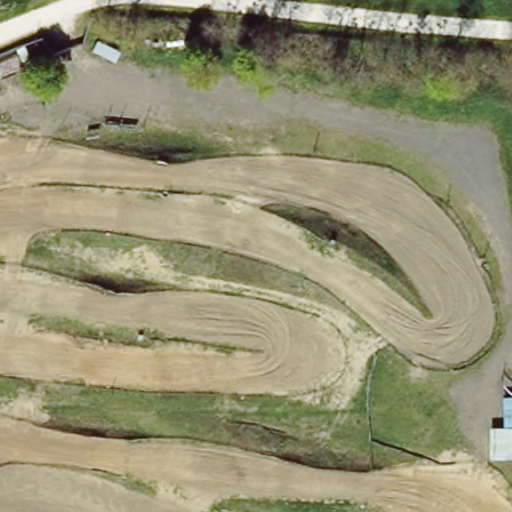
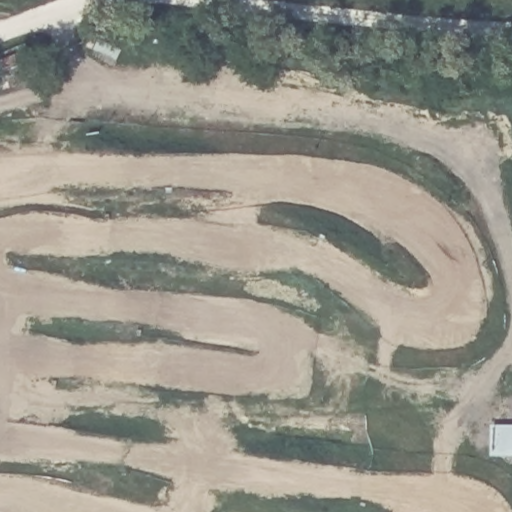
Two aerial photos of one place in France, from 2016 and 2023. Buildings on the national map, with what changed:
unchanged [(512,406),(510,406),(506,380),(512,379),(512,406)]

